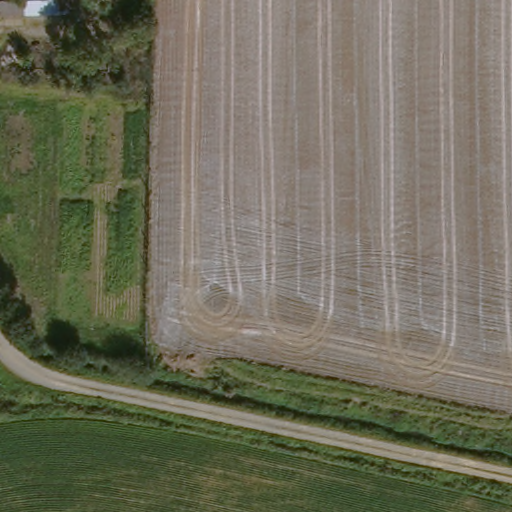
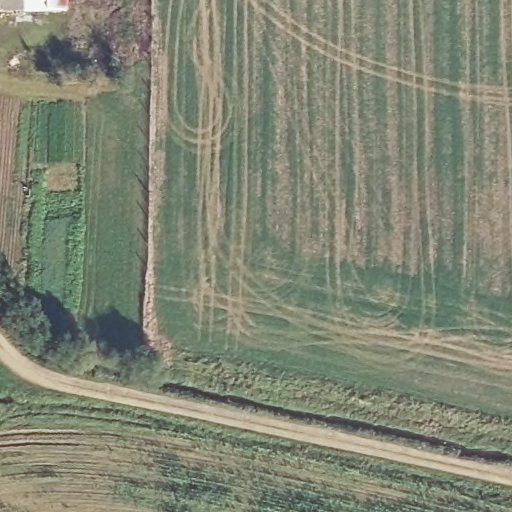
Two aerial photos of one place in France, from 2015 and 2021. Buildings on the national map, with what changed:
unchanged [(0,8),(0,0),(85,0),(84,12),(0,8)]

